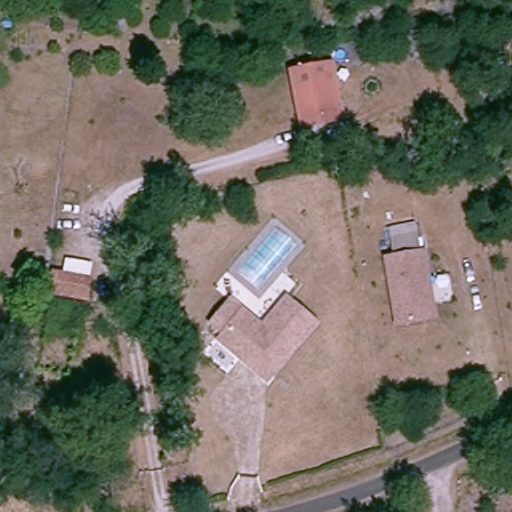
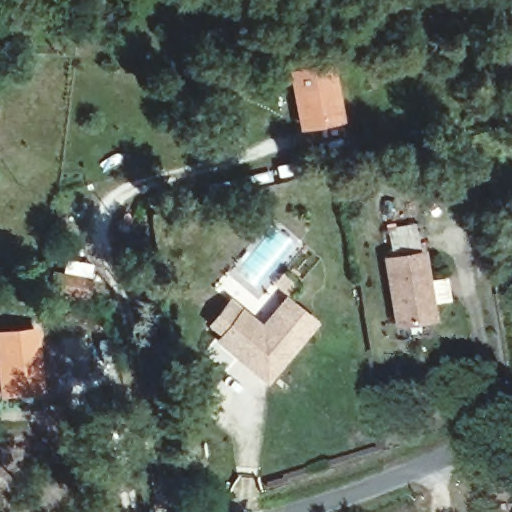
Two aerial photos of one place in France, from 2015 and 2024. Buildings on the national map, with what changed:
unchanged [(303,129),(289,79),(325,70),(338,120),(334,121),(303,129)]
unchanged [(423,243),(436,309),(399,316),(386,250),(423,243)]
unchanged [(43,291),(48,269),(63,272),(66,256),(93,262),(87,301),(43,291)]
unchanged [(215,343),(240,315),(259,331),(283,301),(313,325),(264,383),(215,343)]
new [(36,325),(46,395),(0,400),(0,329),(36,325)]

